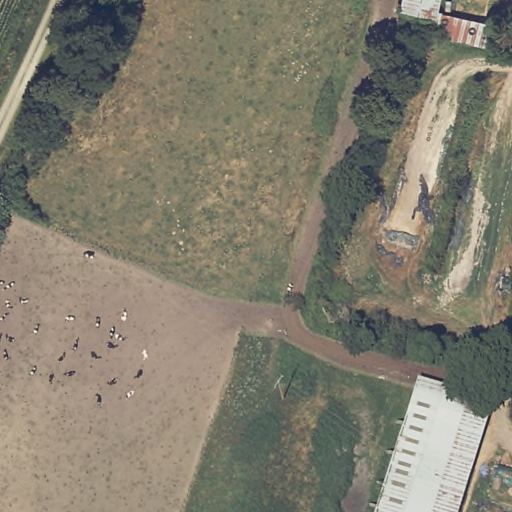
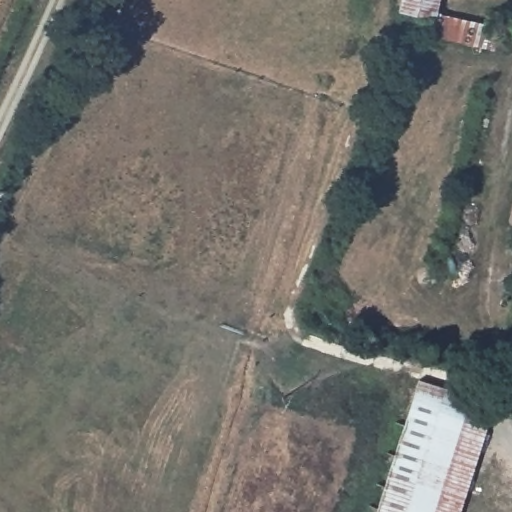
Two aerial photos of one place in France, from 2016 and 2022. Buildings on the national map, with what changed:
unchanged [(435,23),(423,20),(396,14),(400,0),(441,0),(438,15),(435,23)]
unchanged [(512,32),(512,37),(508,54),(419,35),(423,20),(435,23),(438,15),(512,32)]
unchanged [(486,400),(450,512),(379,512),(419,378),(486,400)]

